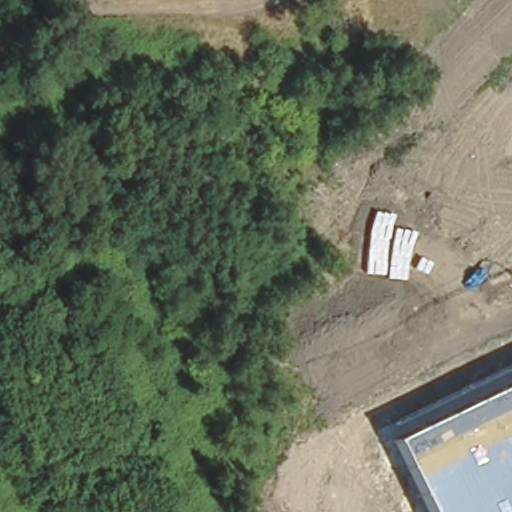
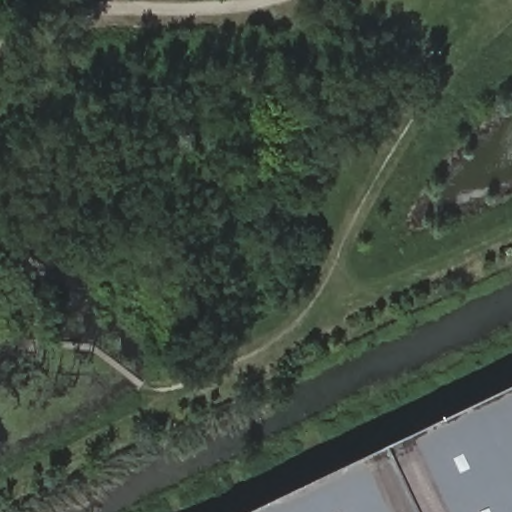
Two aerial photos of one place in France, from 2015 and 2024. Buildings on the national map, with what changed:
unchanged [(512,384),(512,512),(425,512),(391,442),(512,384)]
new [(391,442),(425,512),(243,512),(391,442)]

